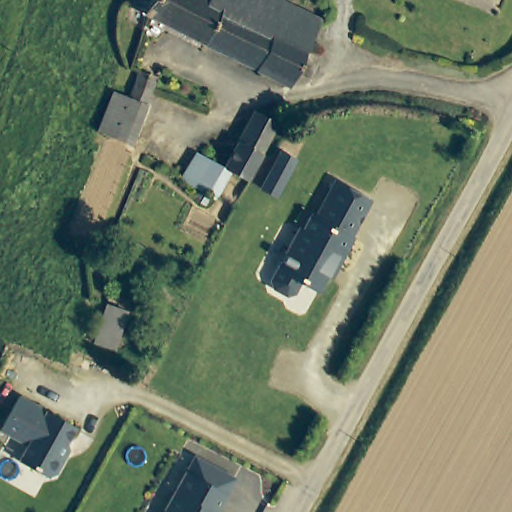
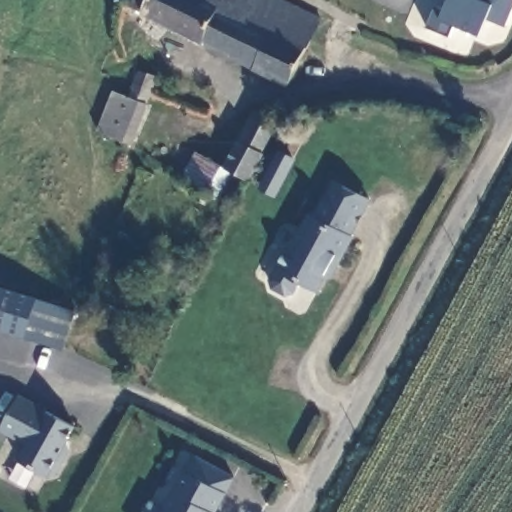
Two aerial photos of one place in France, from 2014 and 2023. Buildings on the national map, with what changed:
unchanged [(207,0),(277,0),(320,22),(307,50),(293,77),(288,86),(139,12),(129,7),(133,0),(206,0),(207,0)]
new [(487,22),(481,36),(455,26),(451,34),(428,26),(437,4),(446,8),(449,0),(512,0),(512,13),(506,29),(487,22)]
unchanged [(129,98),(134,100),(144,73),(161,79),(151,106),(153,106),(136,148),(114,139),(129,98)]
unchanged [(230,174),(217,202),(210,199),(209,201),(207,204),(204,204),(200,204),(198,201),(196,198),(200,190),(181,179),(195,154),(224,170),(257,114),(279,126),(267,146),(248,182),(230,174)]
unchanged [(325,276),(317,293),(299,283),(293,294),(285,296),(272,289),(270,282),(298,229),(302,232),(309,217),(314,219),(334,183),(369,202),(349,238),(352,239),(337,267),(330,279),(325,276)]
new [(61,350),(0,330),(0,286),(75,310),(61,350)]
unchanged [(115,353),(94,345),(108,305),(128,313),(115,353)]
unchanged [(61,453),(63,461),(55,475),(47,478),(19,462),(29,445),(1,430),(19,396),(75,427),(61,453)]
unchanged [(165,509),(185,471),(194,456),(234,479),(226,494),(216,512),(165,512),(165,509)]

